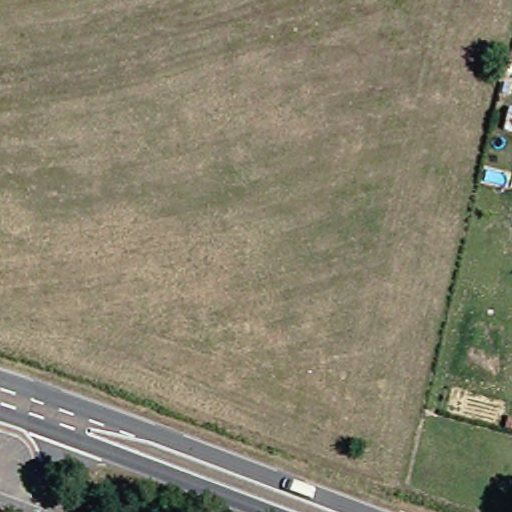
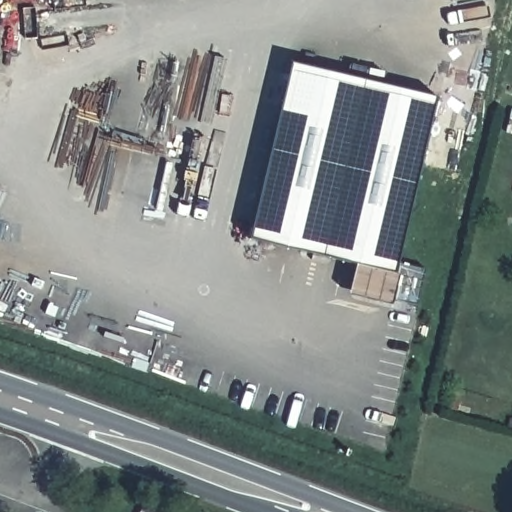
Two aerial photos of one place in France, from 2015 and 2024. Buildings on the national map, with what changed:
new [(398,266),(427,273),(416,307),(357,294),(365,270),(252,240),(294,65),(438,102),(398,266)]

